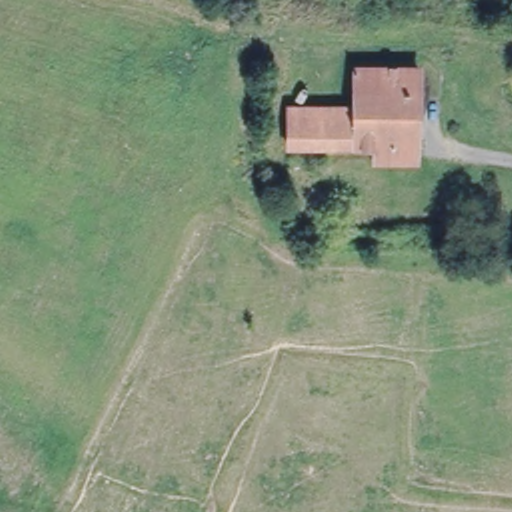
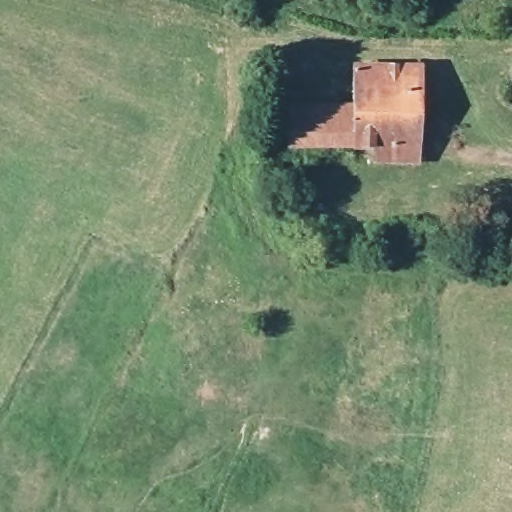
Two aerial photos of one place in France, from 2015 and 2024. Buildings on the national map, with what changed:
unchanged [(376,160),(377,144),(287,142),(287,104),(356,105),(356,65),(418,66),(417,145),(417,161),(376,160)]

